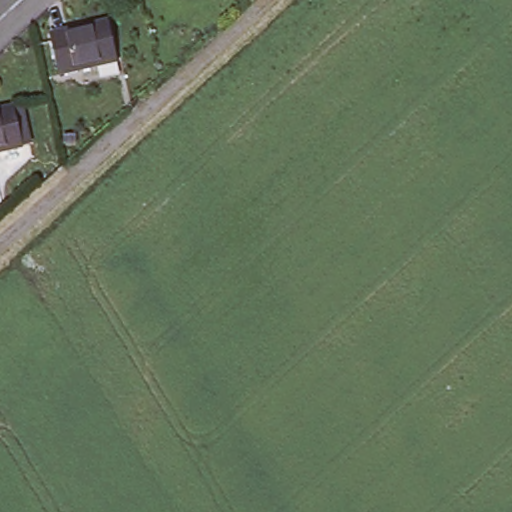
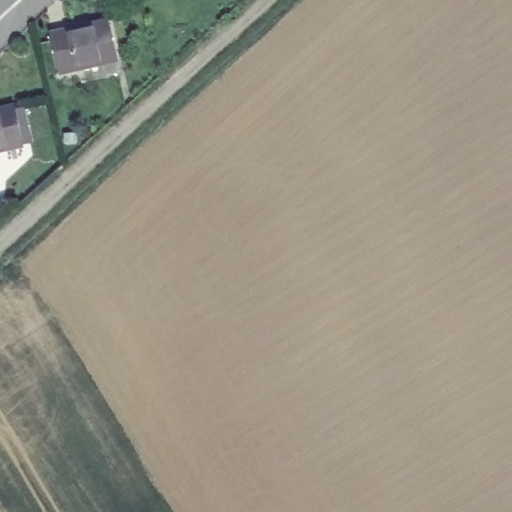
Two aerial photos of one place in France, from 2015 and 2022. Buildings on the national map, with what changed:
unchanged [(57,31),(114,18),(122,57),(66,70),(57,31)]
unchanged [(34,138),(0,145),(0,105),(25,99),(34,138)]

